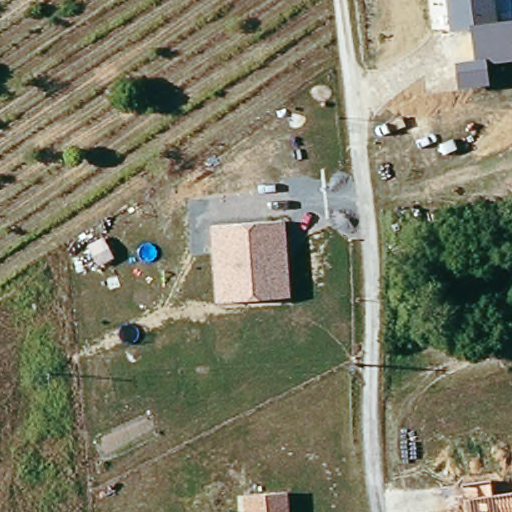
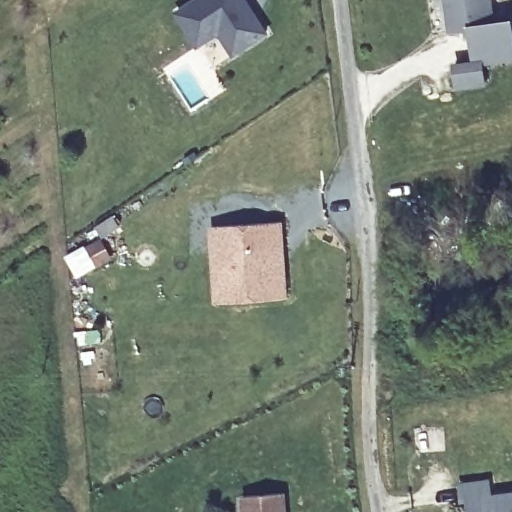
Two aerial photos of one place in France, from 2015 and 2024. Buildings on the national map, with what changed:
new [(188,0),(250,0),(270,33),(235,56),(218,35),(199,47),(173,10),(188,0)]
unchanged [(450,32),(445,0),(493,0),(496,22),(512,20),(512,59),(483,63),(486,82),(460,87),(456,67),(476,63),(470,29),(450,32)]
unchanged [(210,227),(285,223),(290,299),(215,305),(210,227)]
unchanged [(492,495),(512,492),(512,512),(463,512),(460,484),(490,480),(492,495)]
unchanged [(287,494),(289,512),(245,512),(245,496),(287,494)]

